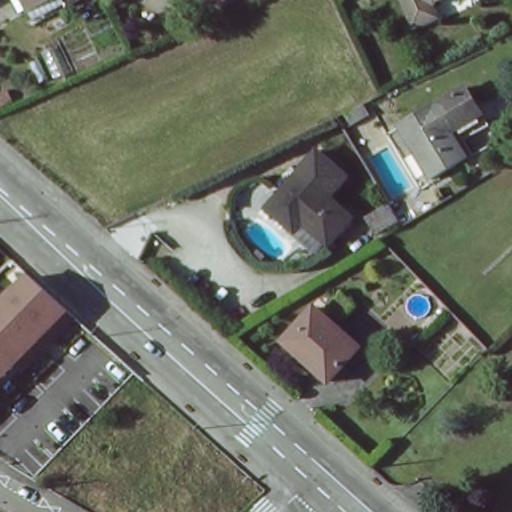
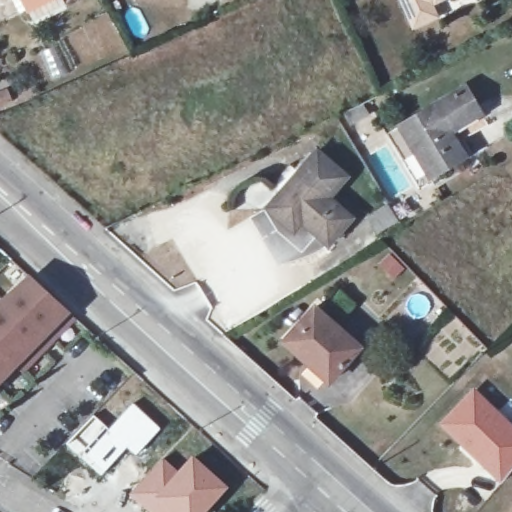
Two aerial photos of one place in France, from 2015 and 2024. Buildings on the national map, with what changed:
unchanged [(22,0),(46,0),(34,6),(28,9),(22,0)]
unchanged [(411,26),(408,20),(400,0),(436,0),(426,5),(429,10),(432,17),(411,26)]
unchanged [(430,180),(399,127),(465,87),(475,105),(481,115),(451,133),(466,159),(430,180)]
unchanged [(324,200),(345,219),(323,244),(297,222),(289,230),(263,207),(310,154),(341,179),(324,200)]
unchanged [(68,312),(17,365),(0,350),(0,306),(31,278),(68,312)]
unchanged [(303,357),(306,355),(288,338),(314,308),(358,348),(328,381),(303,357)]
unchanged [(17,365),(0,381),(0,350),(17,365)]
new [(512,423),(512,469),(501,482),(437,423),(473,386),(512,423)]
new [(161,428),(135,456),(127,448),(101,477),(79,457),(64,445),(93,413),(108,427),(132,402),(161,428)]
demolished [(74,436),(55,455),(39,442),(58,422),(74,436)]
new [(178,469),(192,453),(229,486),(206,512),(148,512),(128,495),(162,457),(178,469)]

